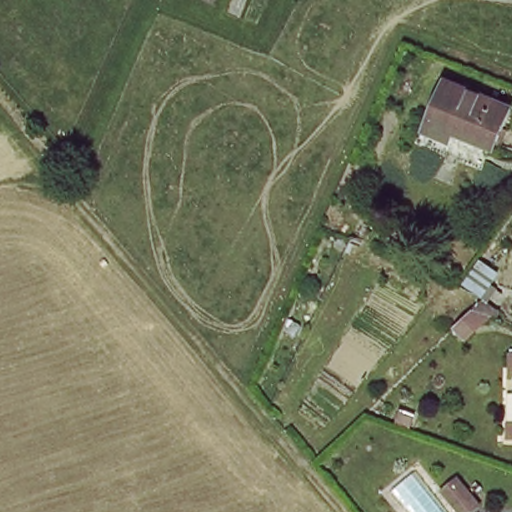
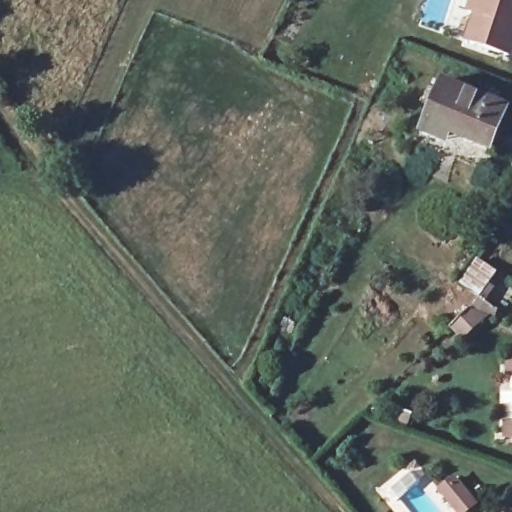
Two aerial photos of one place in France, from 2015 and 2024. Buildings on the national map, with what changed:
new [(473,29),(466,27),(476,0),(497,7),(499,0),(512,0),(512,40),(512,41),(512,42),(512,50),(505,70),(464,55),(473,29)]
unchanged [(491,148),(439,125),(433,136),(418,131),(441,85),(507,114),(491,148)]
unchanged [(502,271),(484,296),(462,281),(479,255),(502,271)]
unchanged [(490,318),(460,343),(448,328),(477,303),(490,318)]
unchanged [(471,512),(458,512),(439,488),(458,473),(482,503),(471,512)]

